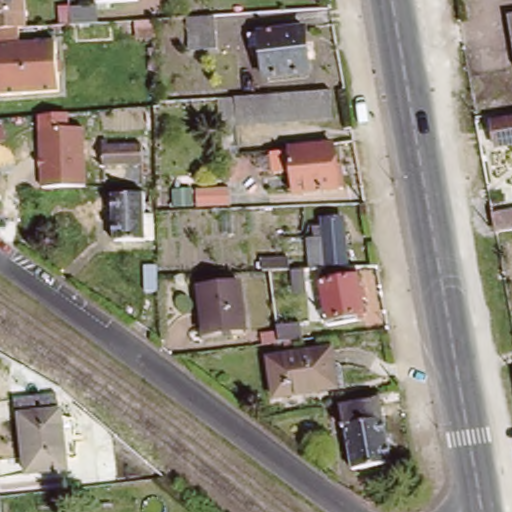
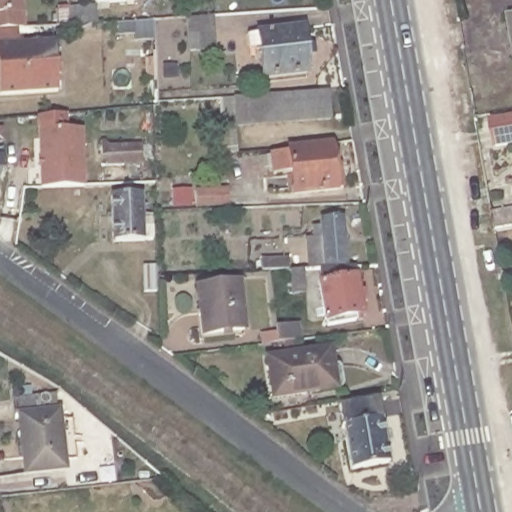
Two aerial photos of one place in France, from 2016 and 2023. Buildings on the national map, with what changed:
unchanged [(0,31),(0,0),(23,0),(25,29),(0,31)]
unchanged [(97,0),(137,0),(137,2),(97,5),(97,0)]
unchanged [(98,9),(99,25),(70,27),(70,10),(98,9)]
unchanged [(216,17),(217,51),(190,52),(190,20),(216,17)]
unchanged [(507,17),(512,17),(512,46),(507,17)]
unchanged [(55,37),(61,91),(0,93),(0,31),(25,29),(55,37)]
unchanged [(310,76),(265,81),(259,35),(305,30),(310,76)]
unchanged [(237,101),(332,96),(334,122),(239,127),(237,101)]
unchanged [(492,149),(487,124),(512,119),(512,145),(492,149)]
unchanged [(39,126),(85,126),(85,186),(40,186),(39,126)]
unchanged [(107,142),(147,141),(147,161),(101,162),(100,137),(107,137),(107,142)]
unchanged [(334,144),(338,188),(295,192),(291,147),(334,144)]
unchanged [(229,191),(229,207),(197,207),(196,192),(229,191)]
unchanged [(152,242),(145,242),(112,242),(112,196),(144,195),(145,217),(152,217),(152,242)]
unchanged [(491,231),(490,227),(487,210),(487,204),(512,200),(512,227),(491,231)]
unchanged [(347,271),(316,273),(314,245),(325,244),(323,225),(342,224),(347,271)]
unchanged [(305,283),(292,283),(292,272),(270,272),(269,272),(269,262),(295,261),(295,272),(305,271),(305,283)]
unchanged [(157,292),(144,292),(144,267),(157,267),(157,292)]
unchanged [(358,275),(366,321),(357,322),(360,334),(330,339),(320,276),(358,275)]
unchanged [(206,337),(202,311),(200,288),(239,283),(245,332),(237,333),(206,337)]
unchanged [(276,329),(300,327),(302,342),(278,345),(276,329)]
unchanged [(345,388),(332,391),(270,398),(265,360),(327,351),(330,368),(342,367),(345,388)]
unchanged [(392,464),(353,471),(342,407),(380,401),(392,464)]
unchanged [(69,470),(29,475),(18,417),(60,411),(62,421),(67,460),(69,470)]

